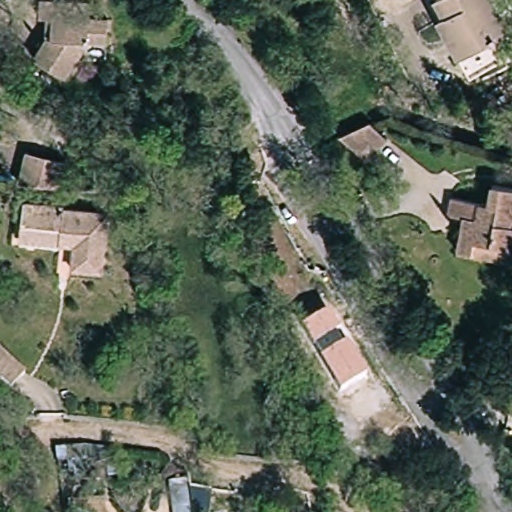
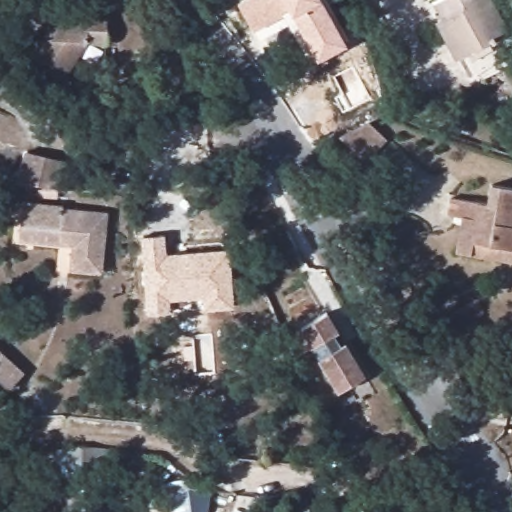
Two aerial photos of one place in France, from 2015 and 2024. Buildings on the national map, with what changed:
new [(309,58),(284,14),(254,30),(238,1),(241,0),(323,0),(347,44),(318,60),(313,54),(309,58)]
unchanged [(478,79),(435,28),(442,22),(428,5),(434,0),(488,0),(508,24),(494,37),(509,54),(478,79)]
unchanged [(37,4),(88,3),(87,19),(107,19),(106,43),(89,43),(66,78),(34,58),(45,40),(45,21),(37,20),(37,4)]
unchanged [(359,162),(342,131),(371,117),(386,148),(359,162)]
unchanged [(23,191),(27,158),(66,162),(62,194),(23,191)]
unchanged [(461,210),(468,194),(501,207),(509,187),(512,188),(512,267),(471,251),(476,239),(484,218),(461,210)]
unchanged [(61,209),(61,212),(105,214),(102,273),(72,271),(73,248),(59,247),(18,244),(19,229),(20,207),(61,209)]
new [(229,249),(234,307),(203,309),(203,299),(172,301),(172,311),(148,312),(143,236),(166,235),(168,253),(229,249)]
unchanged [(366,376),(339,393),(303,330),(329,314),(346,343),(366,376)]
unchanged [(25,375),(10,390),(0,380),(0,350),(25,375)]
unchanged [(187,474),(192,512),(171,512),(169,484),(159,484),(162,463),(187,474)]

